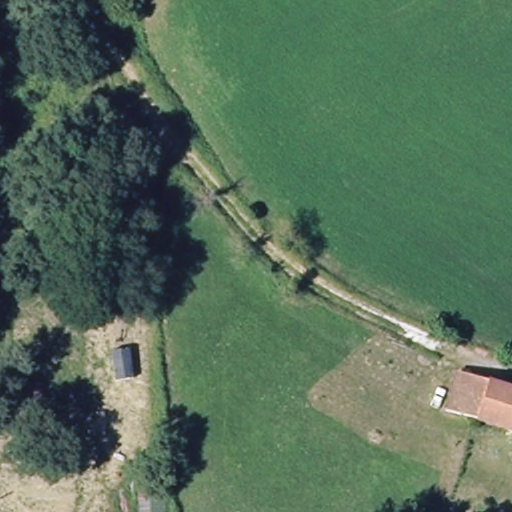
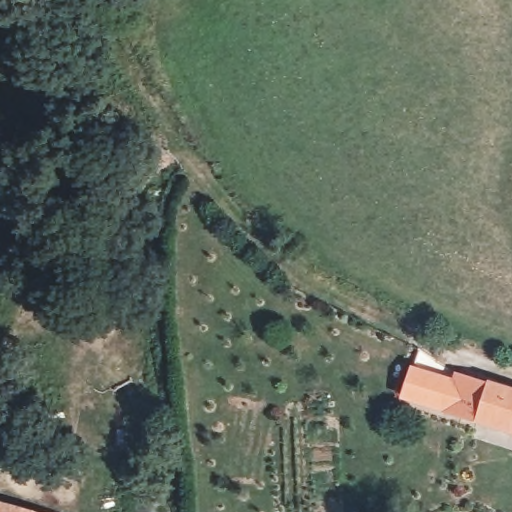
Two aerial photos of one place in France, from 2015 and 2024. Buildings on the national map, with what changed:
new [(452,378),(454,370),(460,372),(447,410),(445,414),(400,401),(411,365),(452,378)]
unchanged [(512,432),(447,410),(460,372),(512,391),(512,432)]
new [(33,510),(32,512),(0,512),(0,501),(33,510)]
new [(40,512),(32,512),(33,510),(40,512)]

